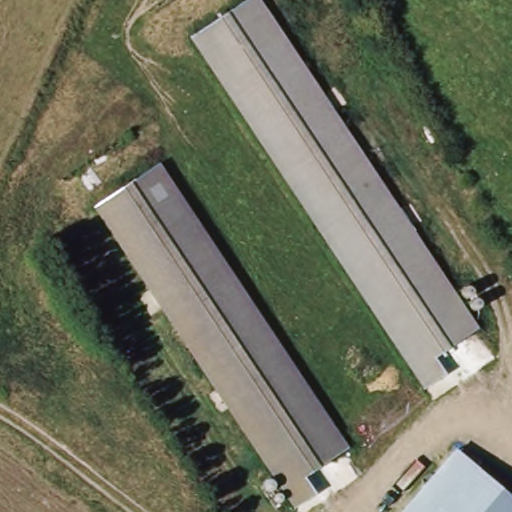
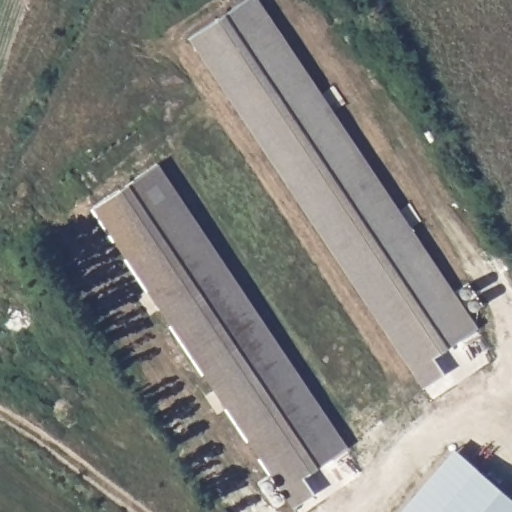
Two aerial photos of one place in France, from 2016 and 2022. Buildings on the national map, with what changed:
unchanged [(247,0),(258,0),(478,330),(434,359),(445,376),(424,390),(190,38),(247,0)]
unchanged [(158,160),(347,445),(304,474),(315,490),(294,504),(93,203),(158,160)]
unchanged [(512,500),(512,512),(398,512),(453,449),(512,500)]

